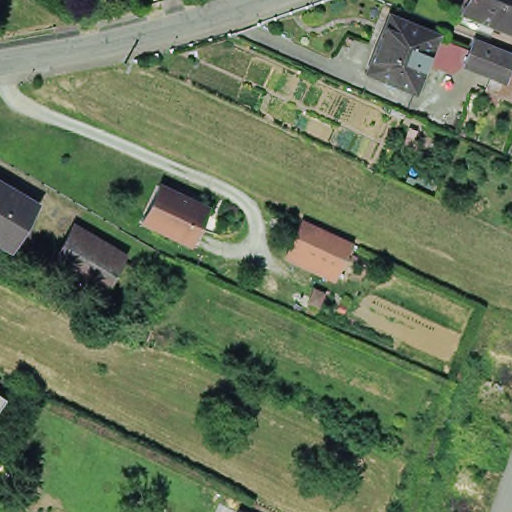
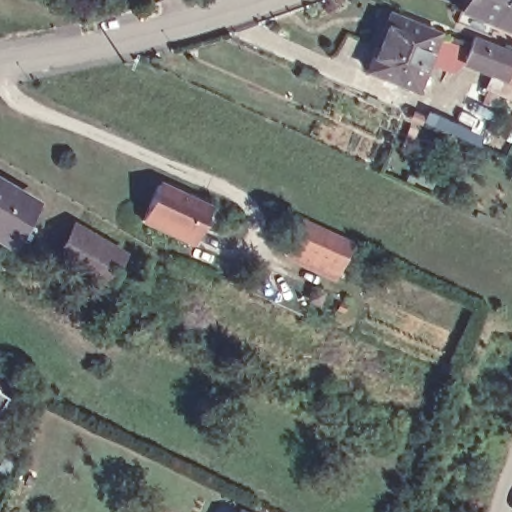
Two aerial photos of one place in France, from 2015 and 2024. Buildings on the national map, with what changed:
unchanged [(458,11),(463,0),(512,0),(512,32),(458,11)]
unchanged [(465,69),(455,78),(425,66),(412,97),(365,78),(388,21),(435,40),(435,43),(470,56),(475,43),(500,53),(500,51),(512,57),(512,70),(507,83),(493,78),(465,67),(465,69)]
unchanged [(489,91),(493,78),(507,83),(512,70),(512,101),(489,91)]
unchanged [(0,186),(32,204),(7,246),(0,242),(0,186)]
unchanged [(183,241),(142,223),(155,193),(159,186),(207,209),(203,218),(199,227),(191,245),(183,241)]
unchanged [(333,277),(283,254),(300,219),(350,242),(333,277)]
unchanged [(82,234),(125,259),(105,293),(62,267),(82,234)]
unchanged [(0,405),(0,397),(3,400),(0,405)]

